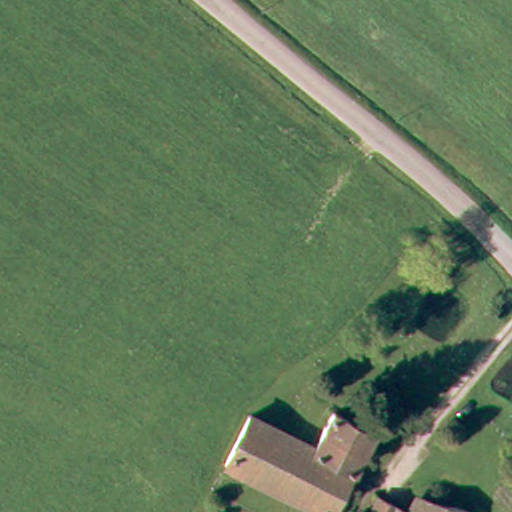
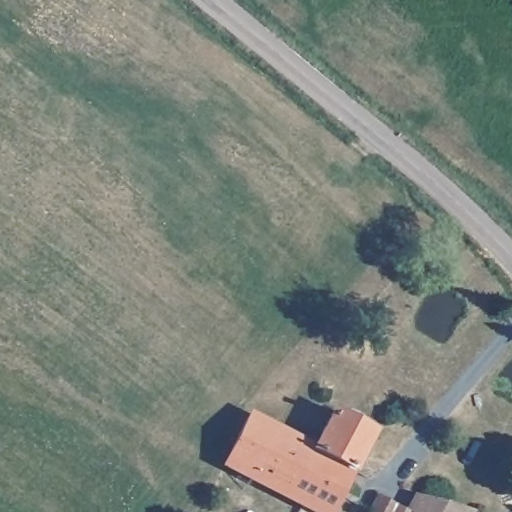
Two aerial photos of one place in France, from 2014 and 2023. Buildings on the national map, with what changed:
unchanged [(306,444),(325,408),(366,429),(323,512),(315,512),(213,460),(238,410),(306,444)]
unchanged [(372,494),(405,512),(416,492),(464,503),(456,512),(361,512),(372,494)]

